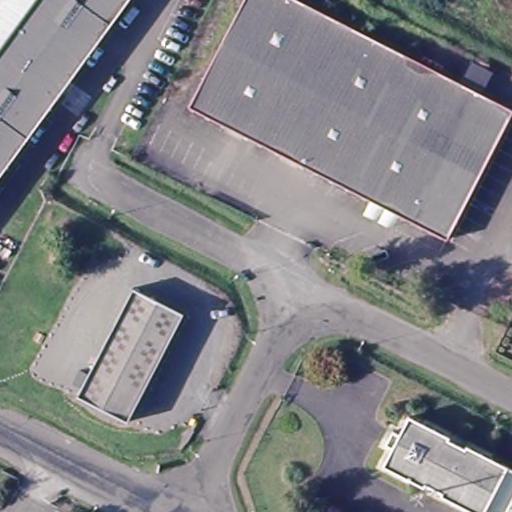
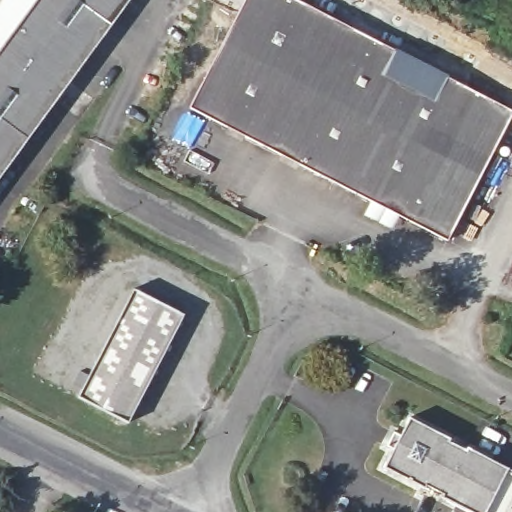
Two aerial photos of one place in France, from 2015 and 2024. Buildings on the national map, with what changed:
unchanged [(128,0),(0,174),(0,0),(128,0)]
unchanged [(248,0),(278,0),(215,120),(192,107),(248,0)]
unchanged [(300,0),(444,74),(379,203),(374,201),(215,120),(278,0),(300,0)]
unchanged [(494,74),(484,95),(512,108),(512,117),(450,240),(401,215),(379,203),(444,74),(464,84),(475,64),(494,74)]
unchanged [(181,317),(124,423),(76,400),(79,392),(73,390),(80,375),(86,378),(131,291),(181,317)]
unchanged [(416,416),(456,437),(455,439),(471,447),(473,445),(512,465),(512,512),(480,512),(447,496),(447,492),(432,485),(431,487),(390,467),(400,447),(392,443),(400,430),(407,433),(416,416)]

